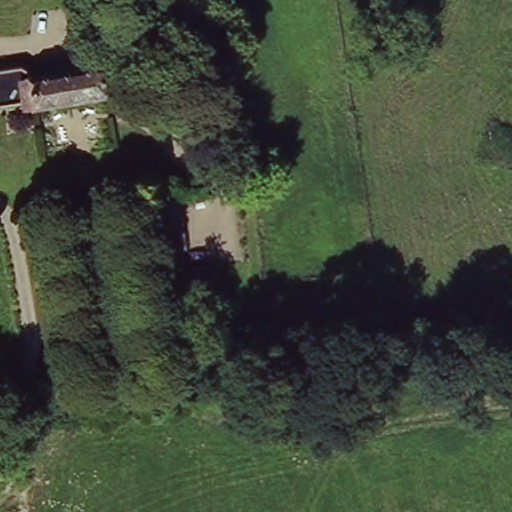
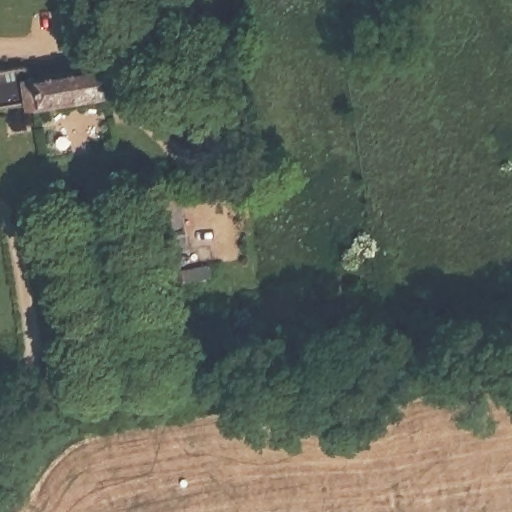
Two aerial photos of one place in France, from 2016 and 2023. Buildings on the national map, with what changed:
unchanged [(36,77),(109,65),(111,96),(39,109),(37,104),(28,106),(27,99),(0,104),(0,70),(24,66),(36,77)]
unchanged [(175,185),(180,237),(172,238),(174,254),(158,256),(149,188),(175,185)]
unchanged [(210,252),(212,266),(185,270),(184,256),(210,252)]

